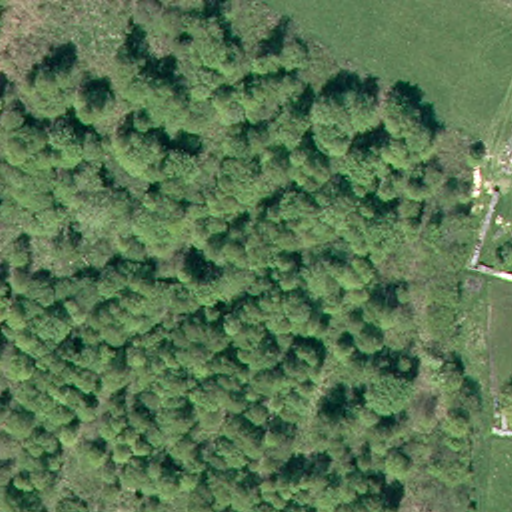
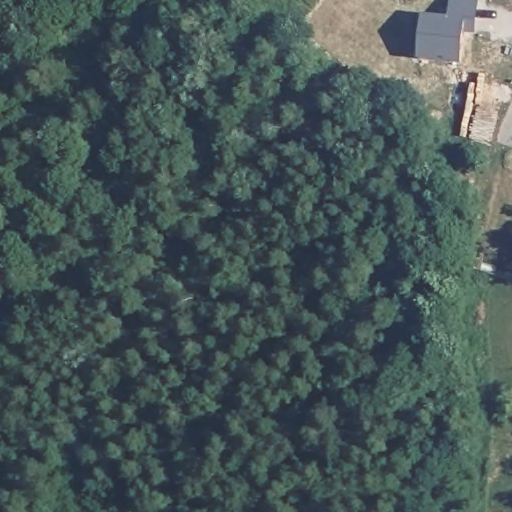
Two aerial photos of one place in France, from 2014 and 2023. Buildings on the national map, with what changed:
new [(449,17),(451,0),(474,0),(471,30),(462,30),(458,64),(415,58),(420,14),(449,17)]

